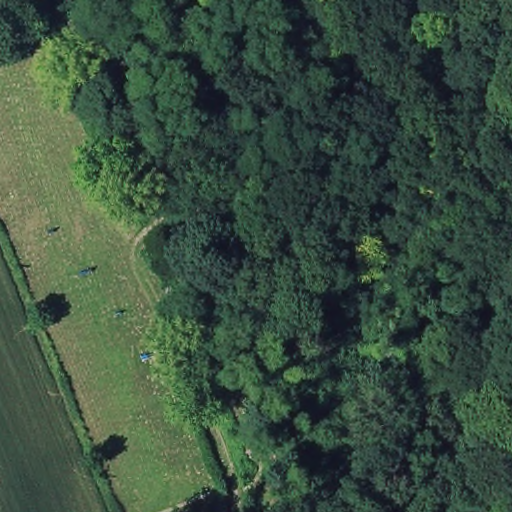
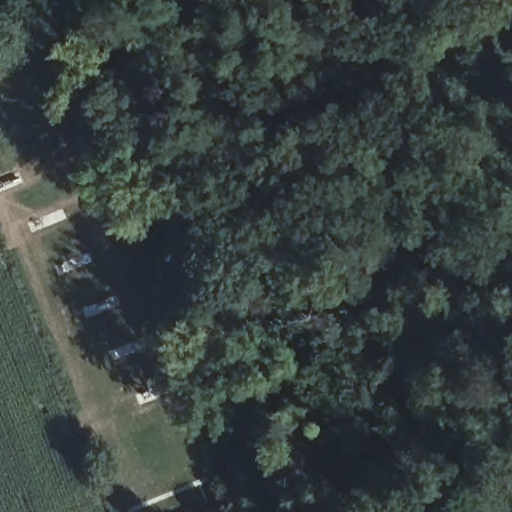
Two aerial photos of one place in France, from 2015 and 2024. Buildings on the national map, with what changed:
unchanged [(162,328),(186,312),(203,351),(181,361),(162,328)]
unchanged [(245,509),(238,512),(230,512),(222,488),(240,484),(245,509)]

